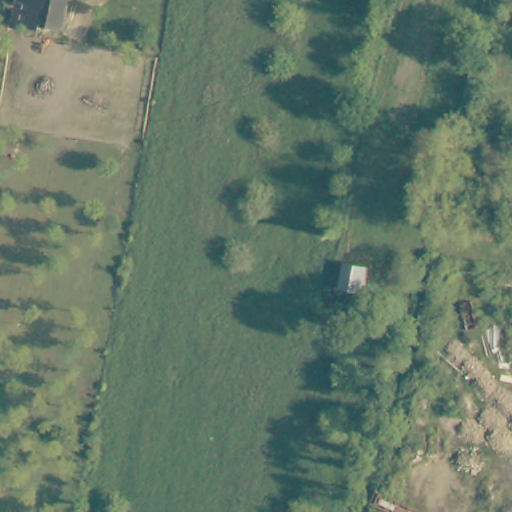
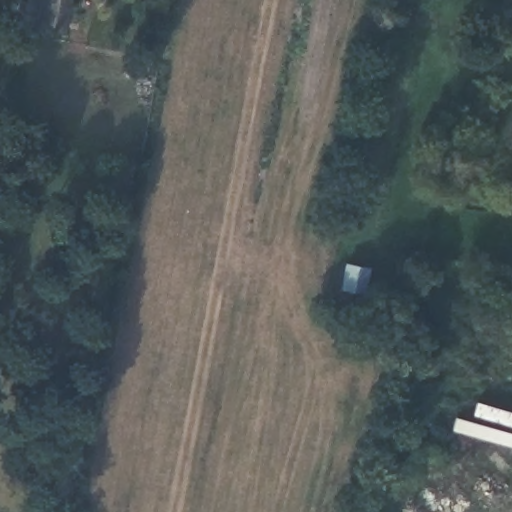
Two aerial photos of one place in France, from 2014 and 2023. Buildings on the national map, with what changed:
unchanged [(32,6),(34,0),(60,0),(57,11),(32,6)]

